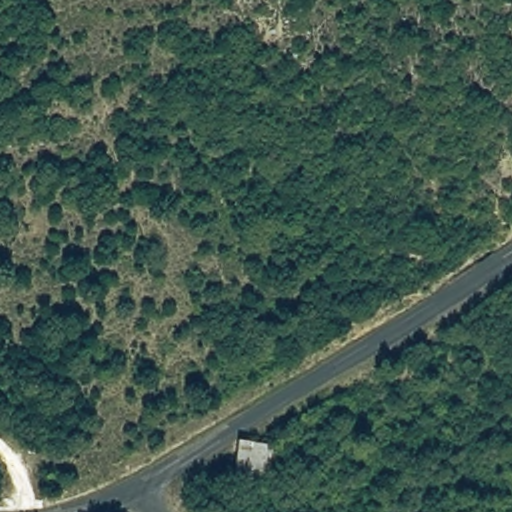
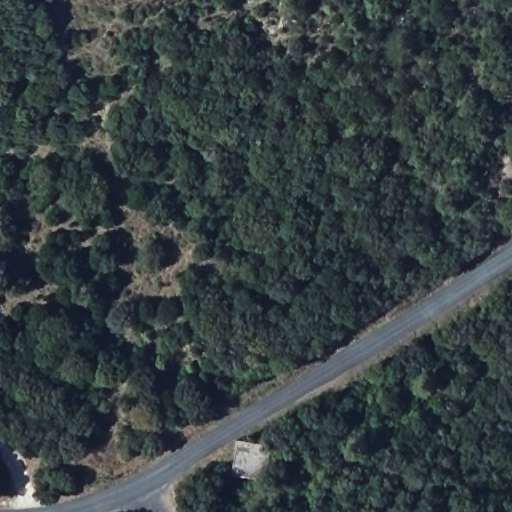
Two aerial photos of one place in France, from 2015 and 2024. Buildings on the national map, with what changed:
unchanged [(274,445),(267,482),(235,476),(242,442),(246,440),(274,445)]

